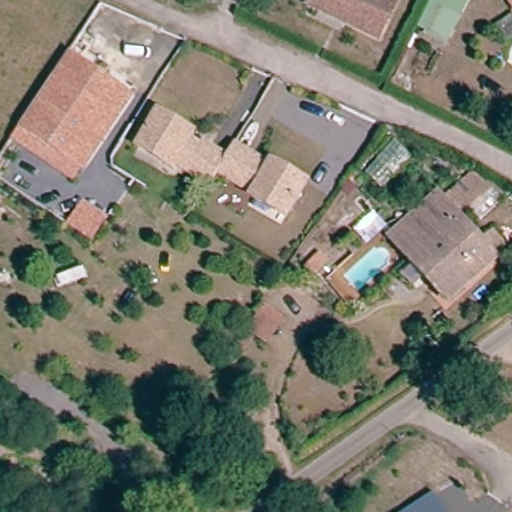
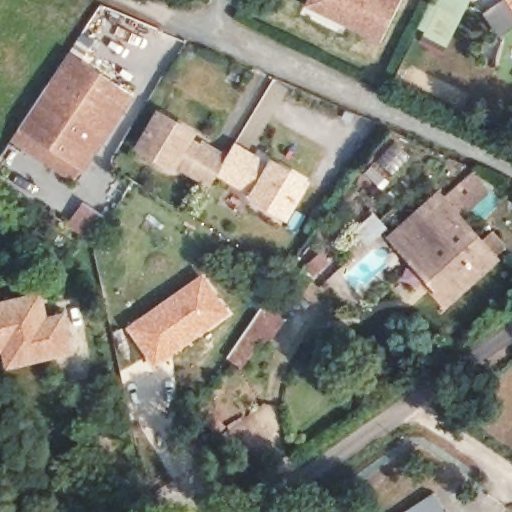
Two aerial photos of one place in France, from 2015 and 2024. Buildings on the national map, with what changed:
unchanged [(308,0),(388,0),(393,3),(375,44),(342,30),(303,12),(307,2),(308,0)]
new [(416,28),(431,0),(470,0),(447,44),(416,28)]
unchanged [(502,0),(512,0),(512,15),(502,0)]
demolished [(452,19),(435,52),(414,41),(430,10),(452,19)]
unchanged [(73,51),(136,91),(92,163),(28,123),(35,113),(73,51)]
unchanged [(159,114),(193,134),(189,142),(201,150),(204,146),(226,159),(234,146),(256,160),(255,163),(267,171),(271,164),(306,184),(286,218),(251,198),(259,185),(246,178),(241,186),(218,172),(210,185),(187,172),(192,164),(180,156),(172,168),(139,149),(159,114)]
unchanged [(92,163),(84,176),(20,136),(27,125),(28,123),(92,163)]
unchanged [(494,202),(463,229),(488,255),(498,246),(510,258),(495,271),(496,274),(455,311),(402,253),(396,245),(441,205),(446,212),(479,184),(494,202)]
new [(82,201),(106,219),(90,241),(65,225),(82,201)]
new [(203,271),(232,312),(152,368),(125,326),(203,271)]
new [(49,315),(65,311),(74,352),(6,369),(1,352),(0,352),(0,301),(42,291),(49,315)]
new [(265,302),(287,318),(269,342),(242,370),(225,358),(265,302)]
unchanged [(436,491),(451,512),(407,512),(436,491)]

